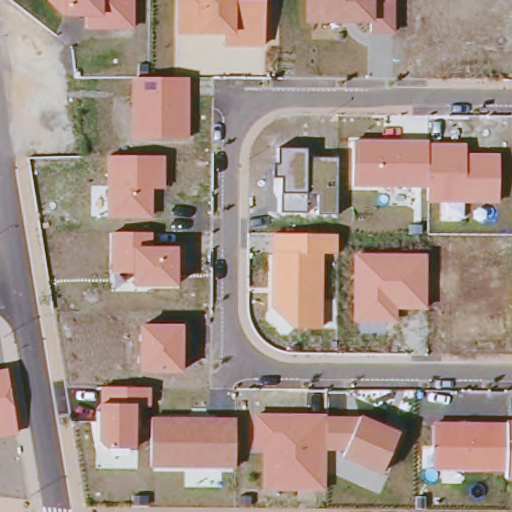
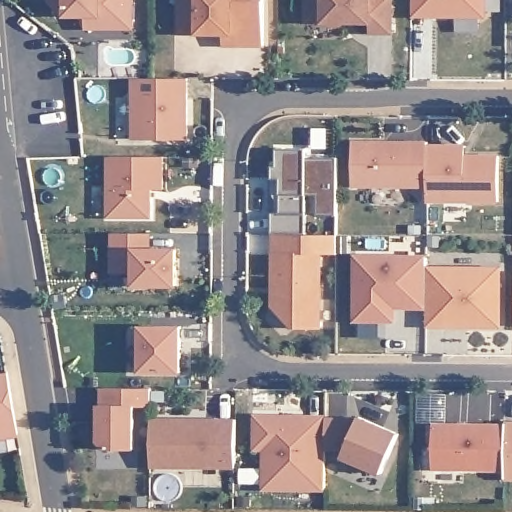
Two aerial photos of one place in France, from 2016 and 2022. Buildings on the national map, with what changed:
unchanged [(85,29),(85,18),(61,17),(47,1),(47,0),(134,0),(133,31),(85,29)]
unchanged [(223,47),(225,34),(177,33),(177,0),(265,0),(264,48),(223,47)]
unchanged [(370,34),(370,23),(305,23),(305,0),(395,0),(395,35),(370,34)]
new [(413,13),(413,0),(485,0),(485,16),(413,13)]
unchanged [(190,79),(190,139),(132,139),(132,78),(190,79)]
unchanged [(429,140),(429,144),(466,144),(465,153),(498,154),(498,204),(465,204),(463,218),(443,217),(443,204),(426,203),(426,188),(355,186),(355,139),(429,140)]
unchanged [(308,149),(308,159),(337,159),(337,215),(317,214),(317,194),(308,194),(307,213),(275,212),(276,199),(272,193),(274,164),(277,164),(278,148),(308,149)]
unchanged [(164,157),(164,190),(152,189),(152,219),(107,218),(107,156),(164,157)]
unchanged [(152,234),(152,247),(177,248),(177,288),(133,286),(133,274),(111,274),(111,232),(152,234)]
unchanged [(338,235),(337,254),(322,254),(322,330),(290,330),(271,307),(272,234),(338,235)]
unchanged [(427,254),(427,309),(397,309),(397,323),(353,322),(353,254),(427,254)]
new [(428,326),(427,309),(427,267),(500,267),(500,326),(428,326)]
unchanged [(182,324),(182,375),(138,374),(139,324),(182,324)]
unchanged [(18,434),(0,436),(0,372),(7,371),(18,434)]
unchanged [(151,388),(150,409),(135,409),(135,448),(129,449),(130,454),(112,454),(111,448),(105,448),(99,441),(100,388),(151,388)]
unchanged [(326,414),(326,418),(360,419),(362,416),(397,433),(380,475),(341,457),(345,450),(325,449),(325,493),(263,491),(264,452),(252,452),(253,413),(326,414)]
unchanged [(235,418),(236,468),(151,466),(152,417),(235,418)]
unchanged [(507,423),(507,421),(512,421),(512,480),(505,479),(505,469),(433,468),(433,422),(507,423)]

